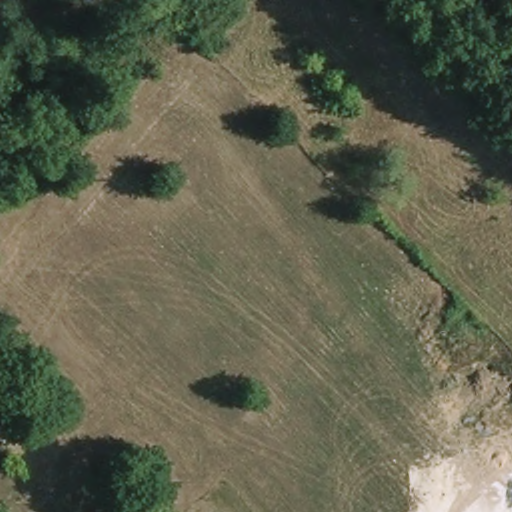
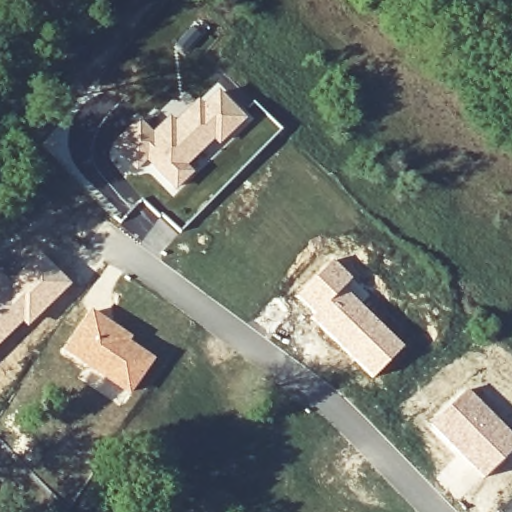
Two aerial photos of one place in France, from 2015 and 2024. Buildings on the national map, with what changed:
demolished [(230,71),(250,50),(285,80),(264,102),(230,71)]
new [(139,117),(151,129),(169,112),(174,117),(215,84),(247,119),(219,149),(212,142),(189,165),(195,172),(172,195),(146,166),(135,174),(109,144),(139,117)]
new [(31,244),(71,285),(25,328),(20,324),(0,343),(0,271),(1,270),(31,244)]
new [(331,260),(353,281),(346,287),(403,347),(371,380),(324,332),(294,296),(313,277),(331,260)]
new [(89,309),(120,330),(155,358),(129,395),(61,350),(89,309)]
new [(467,388),(512,435),(512,450),(481,480),(458,455),(430,423),(467,388)]
new [(458,455),(481,480),(458,500),(436,476),(458,455)]

